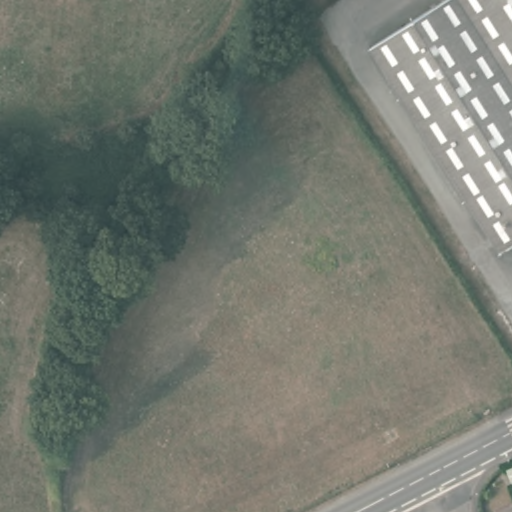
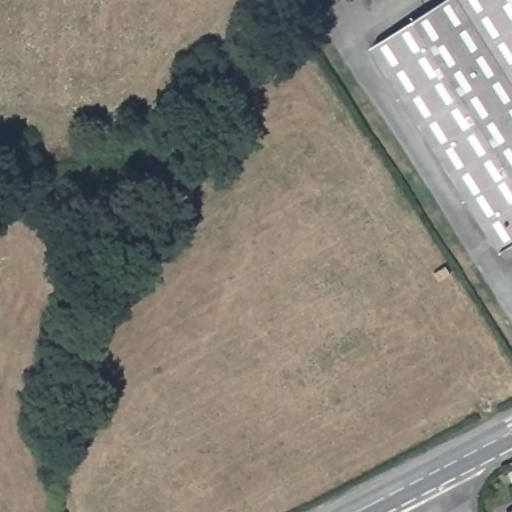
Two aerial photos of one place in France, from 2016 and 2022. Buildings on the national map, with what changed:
unchanged [(501,247),(372,42),(439,0),(512,0),(512,239),(501,247)]

